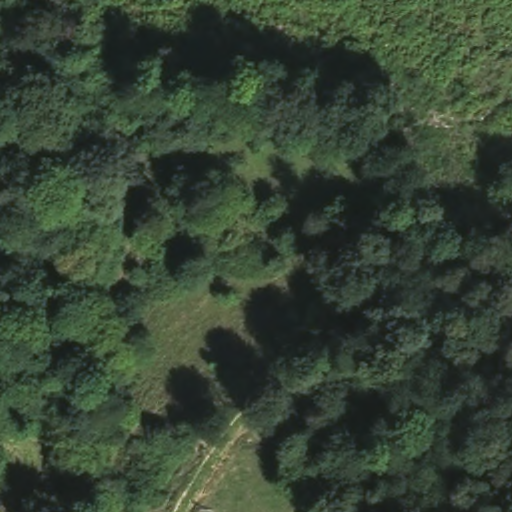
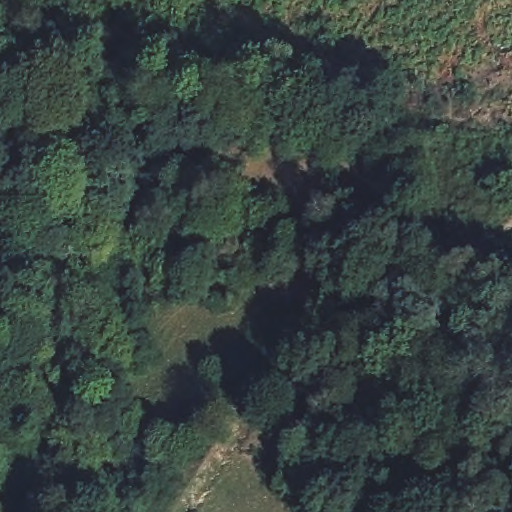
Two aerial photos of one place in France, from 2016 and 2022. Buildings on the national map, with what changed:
[]

